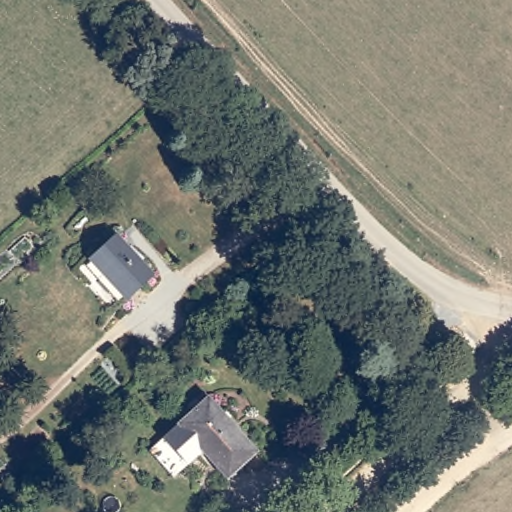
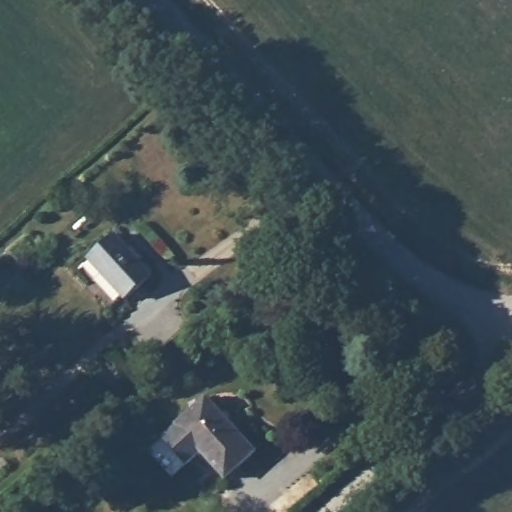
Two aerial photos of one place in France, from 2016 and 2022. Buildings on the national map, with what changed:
unchanged [(113,236),(151,277),(126,299),(86,259),(113,236)]
unchanged [(210,394),(261,448),(230,477),(179,422),(210,394)]

